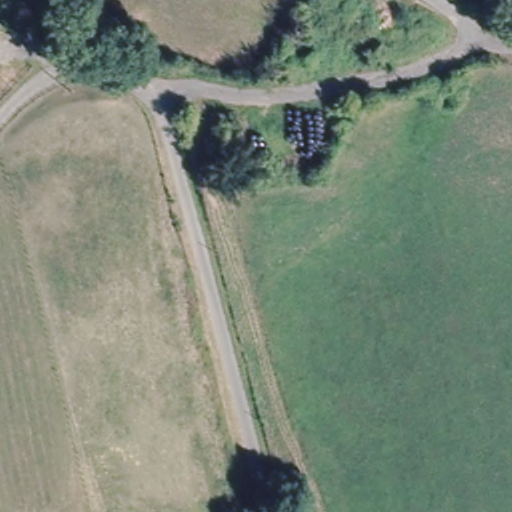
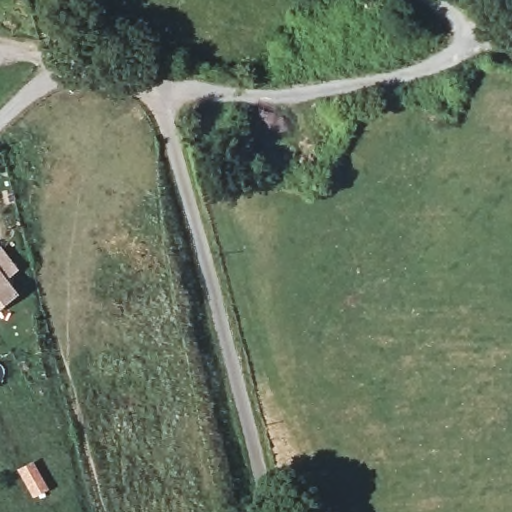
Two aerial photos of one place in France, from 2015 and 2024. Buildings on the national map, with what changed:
new [(17,269),(5,278),(18,294),(0,307),(0,246),(17,269)]

